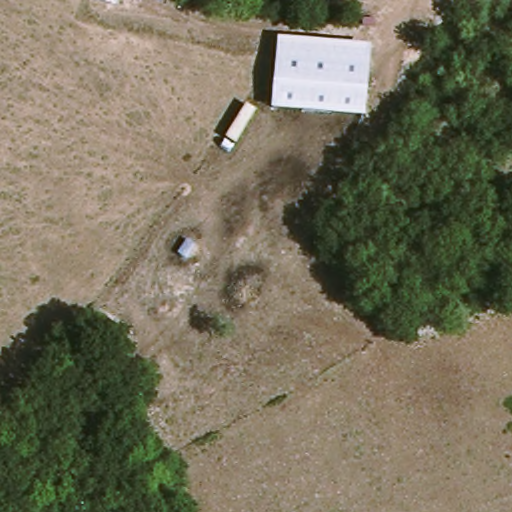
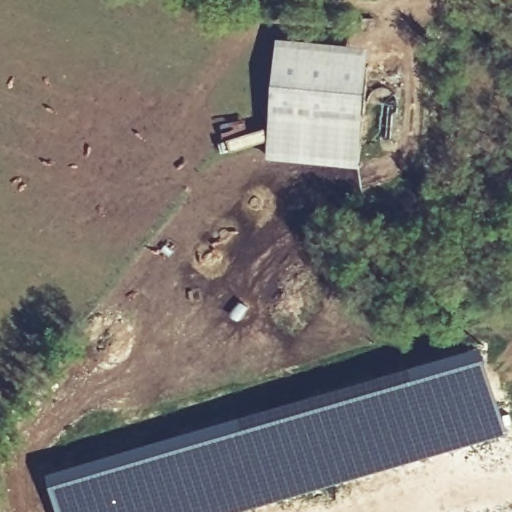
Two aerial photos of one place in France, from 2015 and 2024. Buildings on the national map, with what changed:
unchanged [(371,47),(364,118),(273,110),(279,39),(371,47)]
new [(361,166),(269,157),(273,110),(364,118),(361,166)]
new [(215,432),(414,373),(412,364),(482,345),(483,346),(484,346),(487,353),(509,432),(237,512),(61,512),(48,470),(131,447),(133,455),(215,432)]

